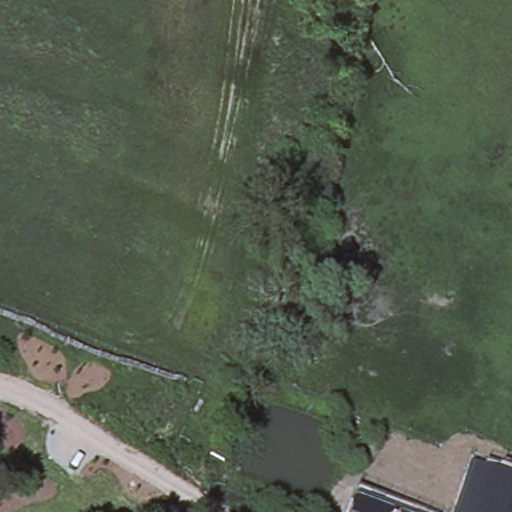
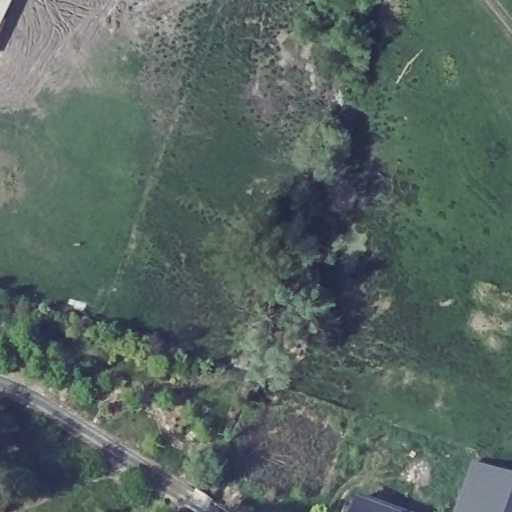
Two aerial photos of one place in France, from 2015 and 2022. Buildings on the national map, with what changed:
new [(0,28),(0,0),(13,0),(0,28)]
unchanged [(492,470),(512,475),(512,512),(456,512),(472,464),(492,470)]
unchanged [(403,512),(351,512),(357,496),(403,512)]

